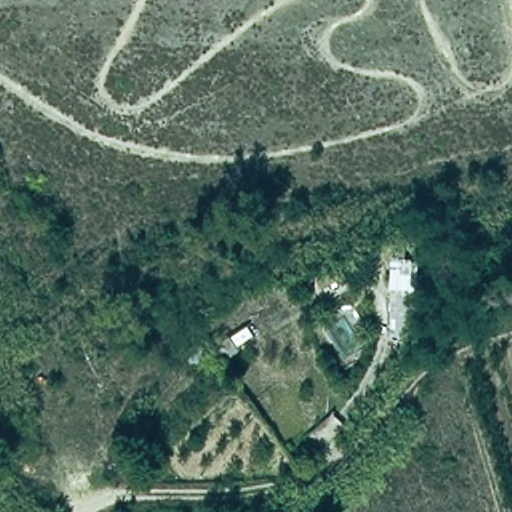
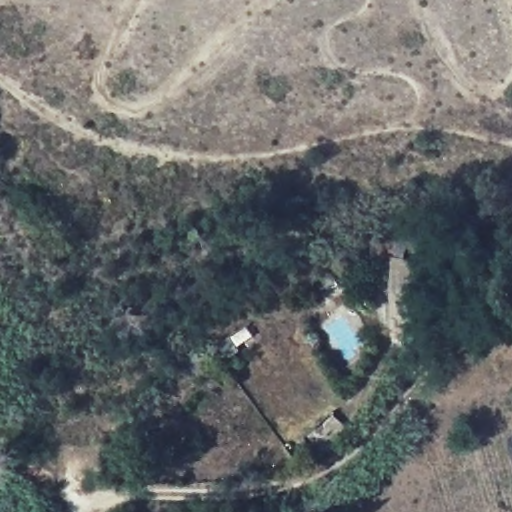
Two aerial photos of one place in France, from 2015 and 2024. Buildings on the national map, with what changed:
unchanged [(420,256),(423,330),(391,332),(387,257),(420,256)]
unchanged [(199,378),(188,360),(206,347),(228,333),(240,352),(228,360),(199,378)]

